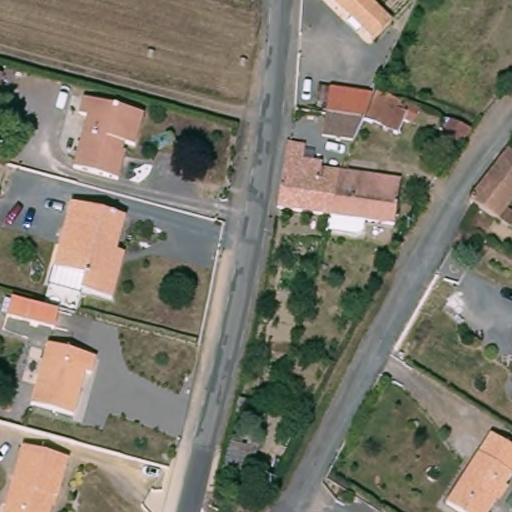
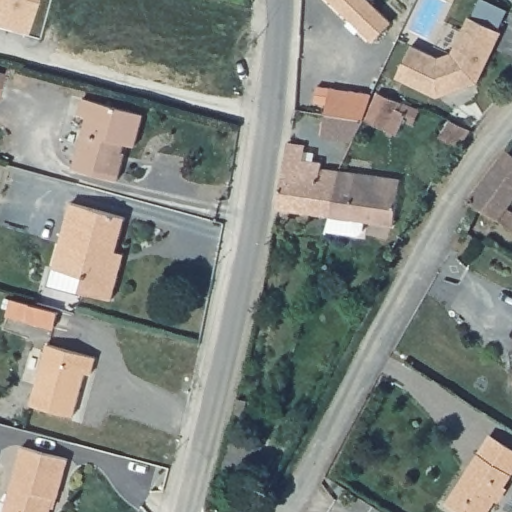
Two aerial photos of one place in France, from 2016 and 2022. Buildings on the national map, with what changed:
unchanged [(372,41),(329,0),(365,0),(389,23),(372,41)]
new [(412,45),(439,57),(452,52),(469,15),(502,30),(478,82),(438,96),(397,77),(412,45)]
unchanged [(328,89),(371,95),(361,120),(352,141),(321,136),(324,115),(328,89)]
unchanged [(364,121),(377,93),(403,104),(418,109),(413,124),(403,120),(397,135),(364,121)]
unchanged [(70,169),(84,118),(76,115),(81,99),(141,115),(133,147),(121,144),(117,162),(120,163),(115,181),(70,169)]
unchanged [(474,124),(464,142),(444,133),(455,116),(474,124)]
unchanged [(285,143),(288,143),(304,146),(300,160),(320,163),(319,169),(323,169),(337,171),(329,214),(275,208),(285,143)]
unchanged [(508,204),(504,208),(512,212),(512,229),(468,200),(493,167),(506,150),(512,154),(512,199),(508,204)]
unchanged [(399,180),(393,225),(363,221),(362,232),(357,236),(325,231),(329,214),(337,171),(399,180)]
unchanged [(119,263),(109,300),(79,292),(82,277),(51,269),(69,204),(123,218),(114,252),(122,254),(119,263)]
unchanged [(34,300),(61,307),(56,324),(29,317),(34,300)]
unchanged [(94,358),(89,375),(83,373),(71,417),(29,405),(45,345),(94,358)]
unchanged [(253,473),(226,466),(234,437),(261,444),(253,473)]
unchanged [(20,447),(66,460),(55,499),(51,498),(48,512),(2,512),(4,505),(20,447)]
unchanged [(512,473),(504,486),(502,485),(494,497),(496,498),(488,512),(460,512),(446,503),(478,452),(512,473)]

